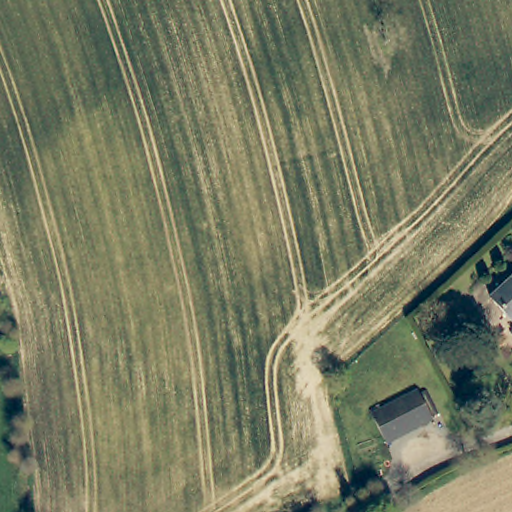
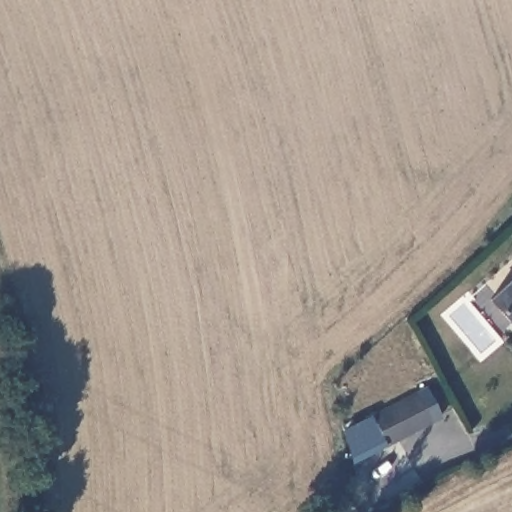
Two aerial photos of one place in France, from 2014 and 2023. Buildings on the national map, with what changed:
unchanged [(512,315),(499,302),(512,289),(512,315)]
unchanged [(420,394),(434,422),(391,444),(377,416),(420,394)]
new [(391,444),(352,463),(341,429),(371,414),(373,418),(377,416),(391,444)]

